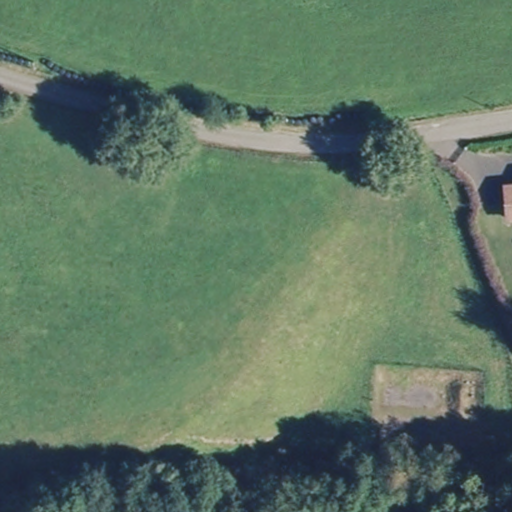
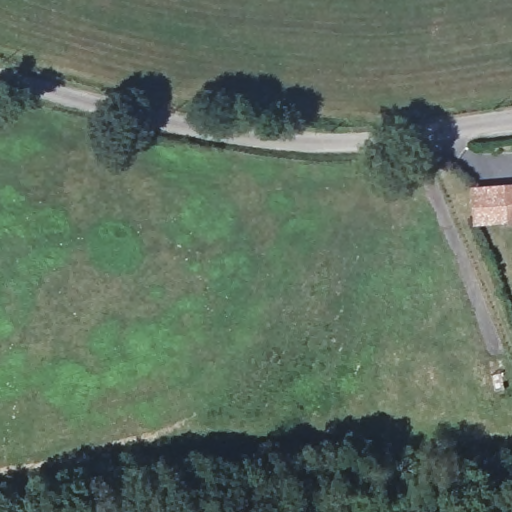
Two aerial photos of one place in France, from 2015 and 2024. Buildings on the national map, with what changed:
new [(470,185),(512,181),(512,189),(503,190),(506,221),(472,223),(470,185)]
unchanged [(512,221),(506,222),(503,190),(512,189),(512,221)]

